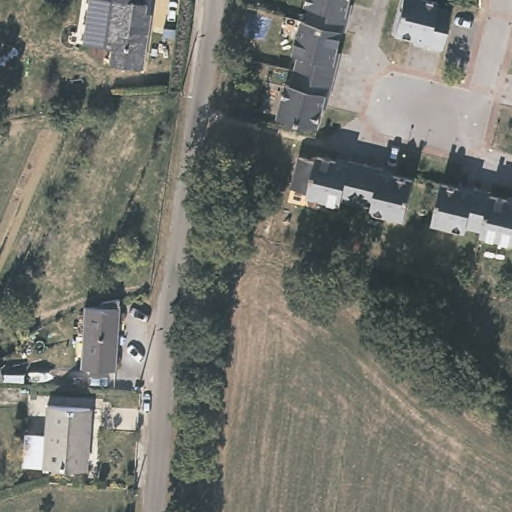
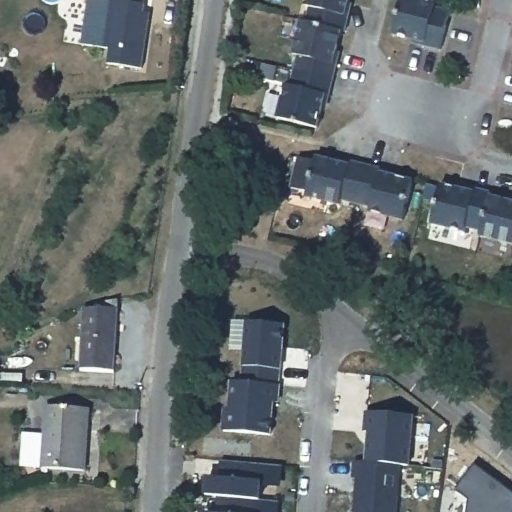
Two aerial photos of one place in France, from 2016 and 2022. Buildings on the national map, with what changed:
unchanged [(141,7),(145,7),(142,21),(149,22),(141,72),(108,67),(110,52),(81,48),(88,1),(108,3),(108,0),(142,0),(141,7)]
unchanged [(345,15),(349,16),(345,32),(341,31),(333,64),(337,65),(333,80),(329,97),(325,96),(317,129),(277,119),(285,86),(290,87),(295,71),(298,55),(293,54),(302,21),(306,22),(310,6),(306,5),(307,0),(349,0),(345,15)]
unchanged [(402,0),(425,0),(437,3),(436,8),(451,11),(441,50),(425,46),(426,42),(394,35),(402,0)]
unchanged [(315,163),(316,158),(348,166),(350,163),(366,166),(382,170),(381,174),(415,182),(405,222),(372,215),(373,210),(340,201),(340,206),(307,199),(308,194),(291,190),(299,159),(315,163)]
unchanged [(442,182),(475,190),(475,186),(492,190),(491,193),(512,198),(512,240),(482,232),(483,227),(467,224),(466,229),(433,221),(442,182)]
unchanged [(118,315),(111,378),(76,375),(85,311),(118,315)]
new [(249,326),(285,328),(282,373),(281,373),(280,390),(245,387),(249,326)]
unchanged [(0,381),(0,360),(2,359),(10,382),(0,381)]
new [(228,413),(232,413),(235,386),(245,387),(280,390),(281,390),(280,406),(275,406),(272,439),(226,435),(228,413)]
unchanged [(46,409),(89,413),(85,477),(45,472),(44,467),(25,466),(29,435),(35,435),(46,436),(46,409)]
new [(368,416),(415,420),(410,470),(403,469),(370,466),(371,436),(367,435),(368,416)]
new [(220,477),(221,460),(282,466),(280,487),(261,486),(260,500),(280,502),(279,512),(219,512),(220,496),(205,495),(207,475),(220,477)]
new [(370,466),(403,469),(400,512),(357,512),(360,482),(355,482),(357,465),(370,466)]
new [(512,492),(512,512),(472,512),(473,505),(460,495),(479,468),(512,492)]
new [(212,512),(204,512),(205,511),(212,512)]

